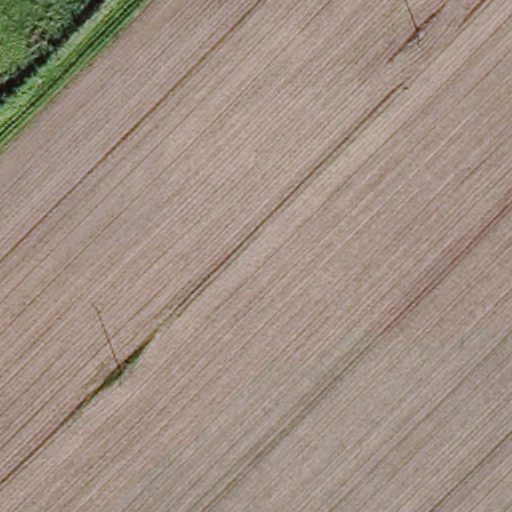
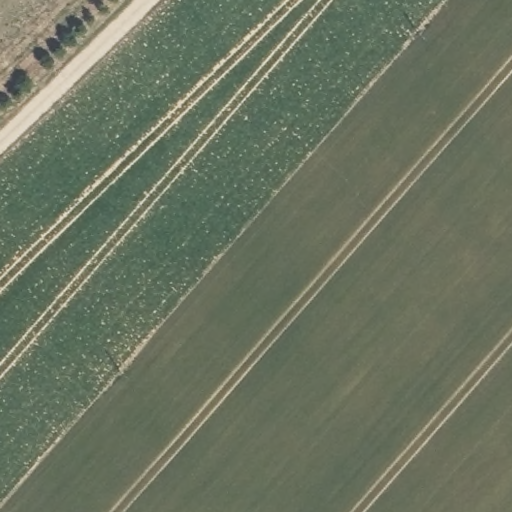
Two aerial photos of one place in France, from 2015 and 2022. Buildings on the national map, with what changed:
[]

